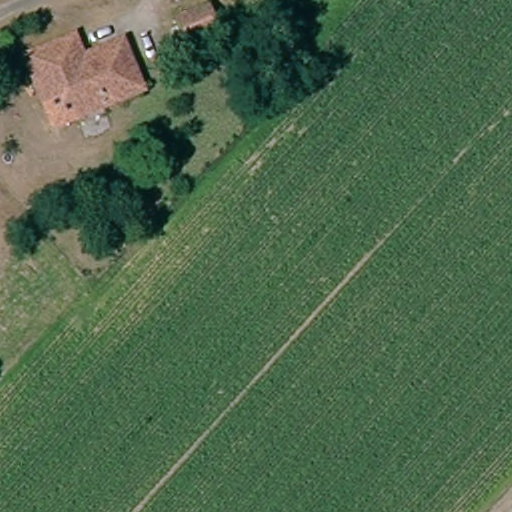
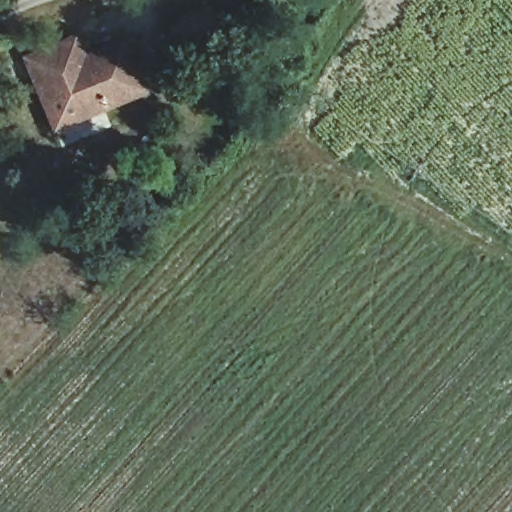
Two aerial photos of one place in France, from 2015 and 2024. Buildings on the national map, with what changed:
unchanged [(190,50),(187,43),(178,22),(210,8),(219,29),(222,36),(190,50)]
unchanged [(84,64),(121,43),(126,51),(147,91),(85,124),(71,102),(50,113),(26,68),(72,43),(84,64)]

